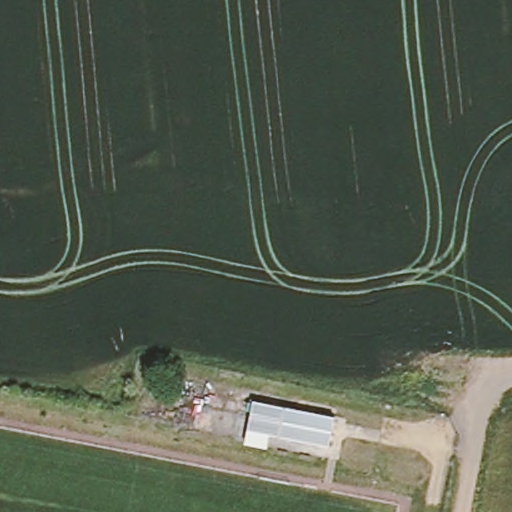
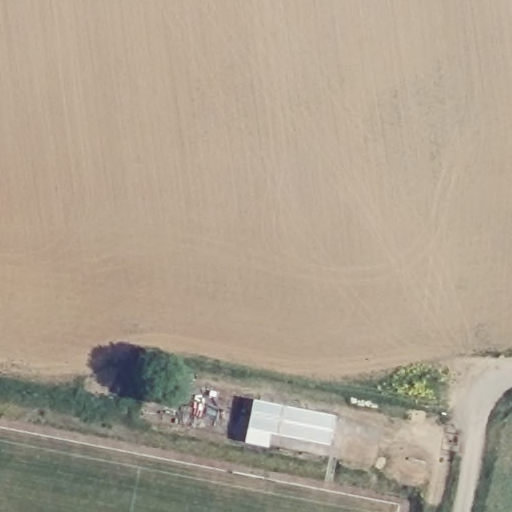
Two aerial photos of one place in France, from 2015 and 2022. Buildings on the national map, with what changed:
unchanged [(337,415),(331,447),(248,430),(254,397),(337,415)]

